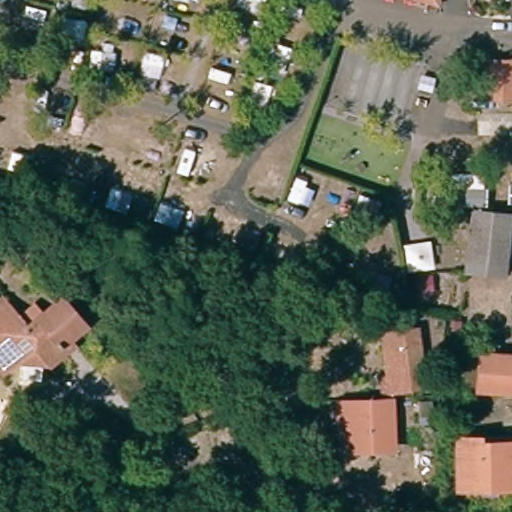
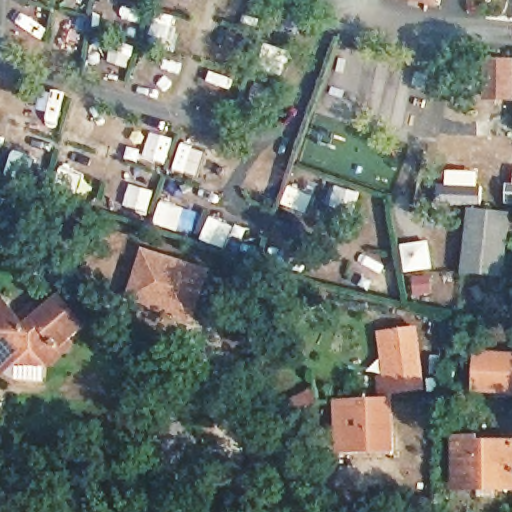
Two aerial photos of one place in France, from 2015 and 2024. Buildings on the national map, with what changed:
unchanged [(434,6),(408,0),(435,0),(434,6)]
unchanged [(479,87),(480,71),(479,61),(479,52),(508,51),(509,62),(508,71),(508,87),(479,87)]
unchanged [(507,216),(503,278),(461,274),(465,213),(507,216)]
new [(194,324),(127,299),(144,248),(212,271),(194,324)]
unchanged [(0,301),(18,321),(30,310),(38,318),(58,301),(83,329),(66,343),(70,349),(62,356),(46,370),(15,368),(3,379),(0,376),(0,301)]
unchanged [(491,394),(476,393),(478,357),(488,358),(489,343),(503,344),(502,359),(512,359),(512,396),(491,394)]
unchanged [(425,390),(384,391),(384,374),(392,374),(391,345),(398,345),(424,344),(425,390)]
unchanged [(340,435),(340,398),(385,399),(392,399),(391,447),(370,446),(339,446),(340,435)]
unchanged [(459,487),(458,439),(480,439),(480,435),(512,435),(512,487),(499,487),(479,487),(459,487)]

